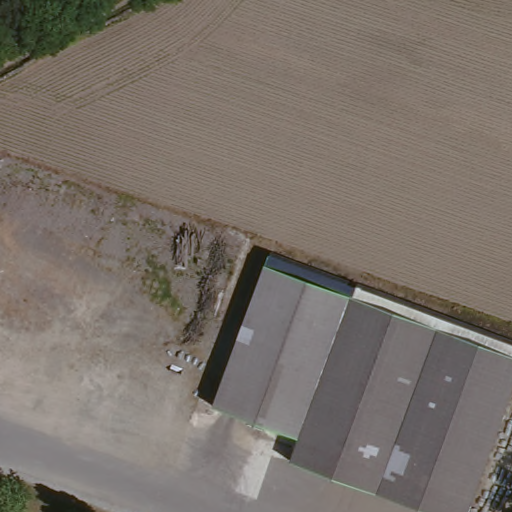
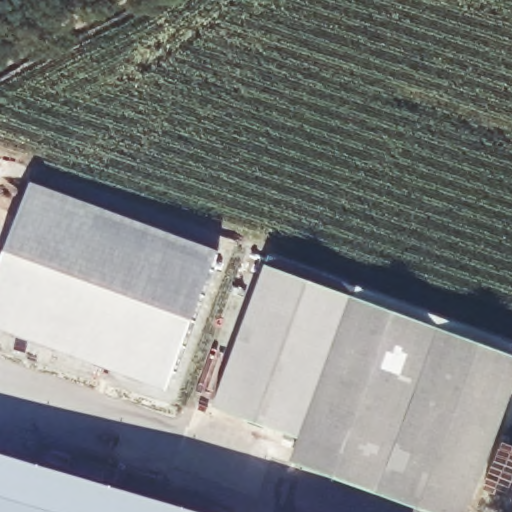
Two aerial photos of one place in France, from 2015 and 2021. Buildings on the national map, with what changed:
new [(0,271),(33,185),(219,253),(168,391),(0,329),(0,271)]
unchanged [(337,395),(235,359),(275,257),(359,290),(364,283),(512,339),(512,414),(498,451),(337,395)]
unchanged [(475,512),(445,512),(298,453),(304,434),(219,402),(235,359),(337,395),(498,451),(475,512)]

